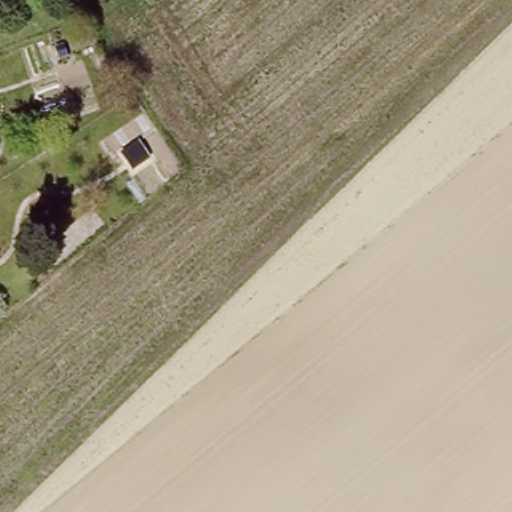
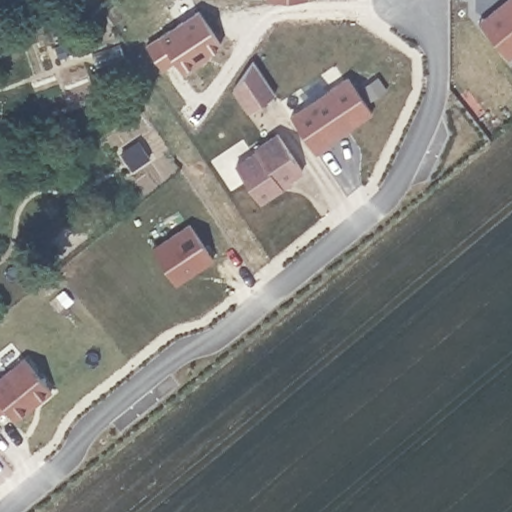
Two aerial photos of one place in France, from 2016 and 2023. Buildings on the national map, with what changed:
new [(508,59),(480,22),(506,0),(512,0),(512,56),(508,59)]
new [(247,112),(232,89),(253,61),(275,94),(247,112)]
new [(330,144),(331,146),(317,155),(315,150),(291,116),(348,77),(373,115),(330,144)]
new [(290,181),(292,185),(262,204),(236,165),(257,150),(255,147),(277,132),(305,173),(290,181)]
new [(139,141),(150,157),(134,168),(123,151),(139,141)]
new [(176,284),(152,248),(190,224),(214,261),(176,284)]
new [(0,377),(23,358),(52,392),(17,421),(6,407),(0,413),(0,377)]

